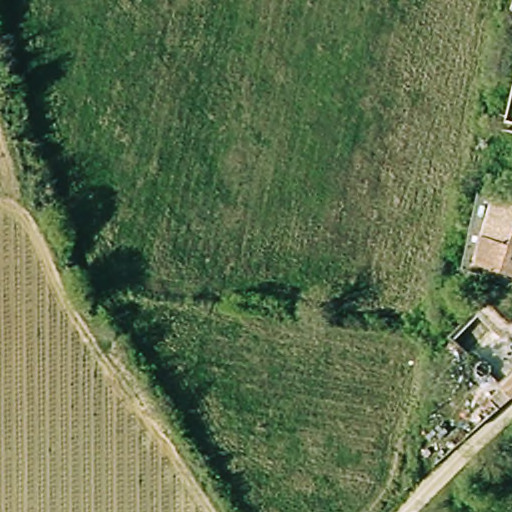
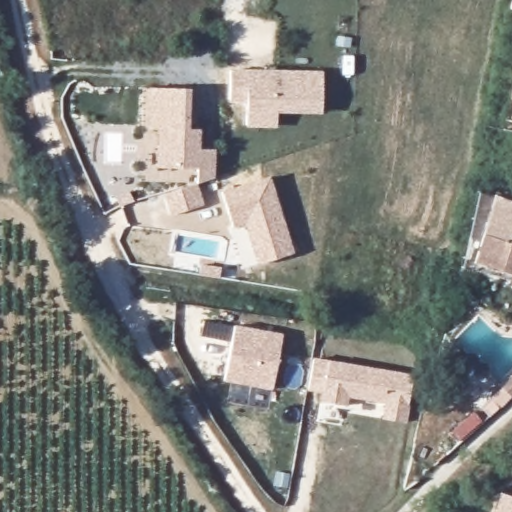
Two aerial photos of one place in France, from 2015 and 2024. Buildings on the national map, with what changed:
new [(249,69),(324,71),(322,114),(278,113),(278,129),(248,127),(248,104),(230,102),(231,69),(249,69)]
new [(191,89),(190,129),(201,129),(201,150),(216,150),(215,177),(197,181),(197,169),(157,167),(158,129),(148,129),(149,88),(191,89)]
new [(269,175),(295,252),(258,265),(243,223),(232,226),(221,191),(269,175)]
new [(204,205),(170,216),(163,195),(197,184),(204,205)]
new [(118,195),(131,191),(134,201),(121,205),(118,195)]
unchanged [(490,204),(505,206),(512,208),(512,274),(484,269),(480,268),(490,204)]
new [(282,333),(272,390),(224,381),(234,325),(282,333)]
new [(409,404),(410,405),(407,423),(381,420),(384,402),(348,397),(347,405),(320,401),(321,392),(307,390),(313,357),(329,360),(414,375),(409,404)]
unchanged [(512,371),(512,393),(508,396),(497,383),(512,371)]
new [(512,499),(512,512),(494,512),(499,495),(512,499)]

